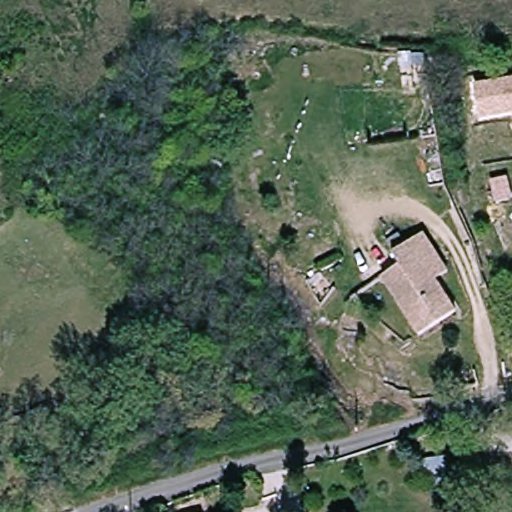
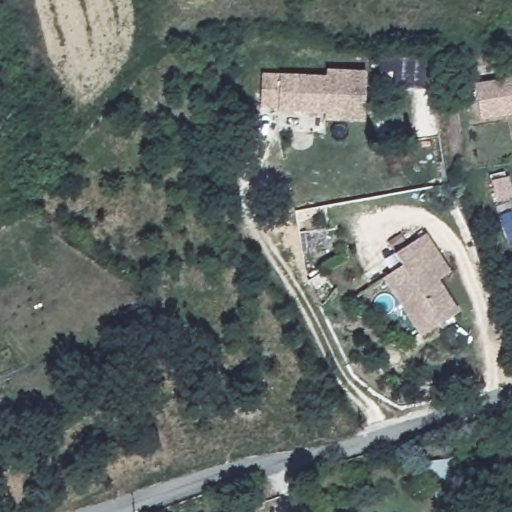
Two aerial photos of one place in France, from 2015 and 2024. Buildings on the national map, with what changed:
new [(362,122),(322,120),(322,114),(277,112),(277,107),(259,106),(261,72),(324,76),(325,69),(364,71),(362,122)]
unchanged [(475,85),(512,78),(512,113),(479,117),(475,85)]
unchanged [(419,340),(378,282),(395,270),(388,257),(415,239),(430,261),(442,277),(432,285),(453,316),(419,340)]
unchanged [(433,507),(430,463),(455,462),(457,505),(433,507)]

